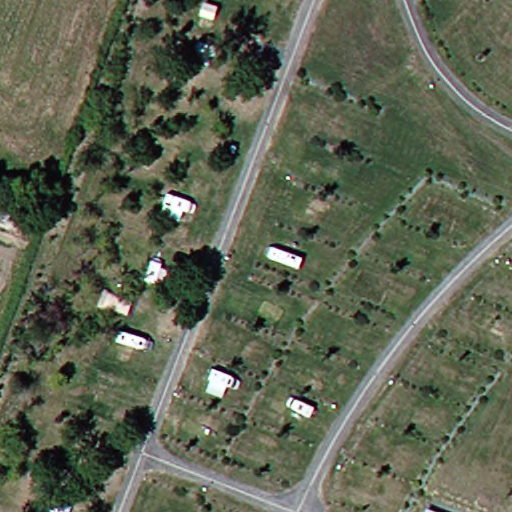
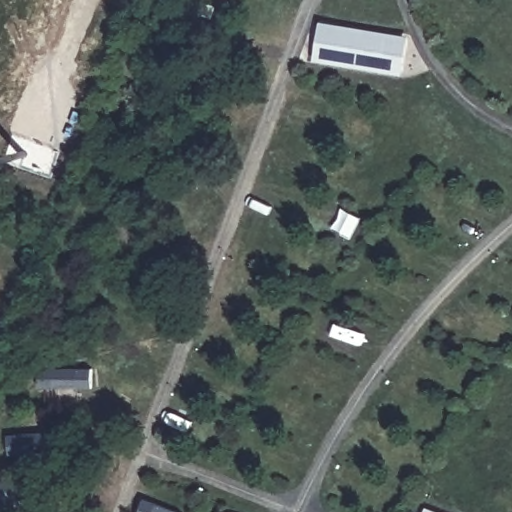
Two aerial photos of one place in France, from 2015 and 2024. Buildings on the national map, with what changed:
new [(320,57),(324,27),(344,31),(365,34),(403,39),(399,69),(363,64),(339,60),(320,57)]

